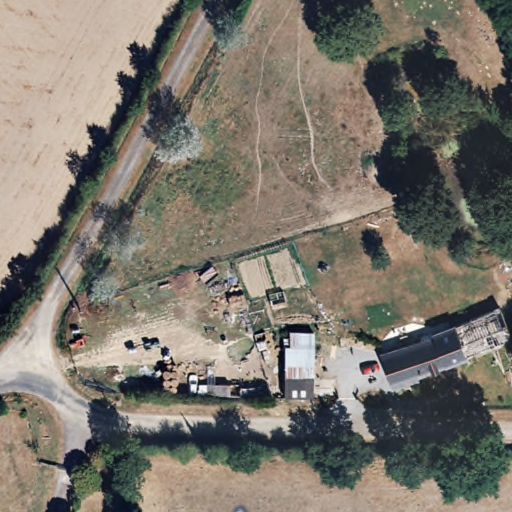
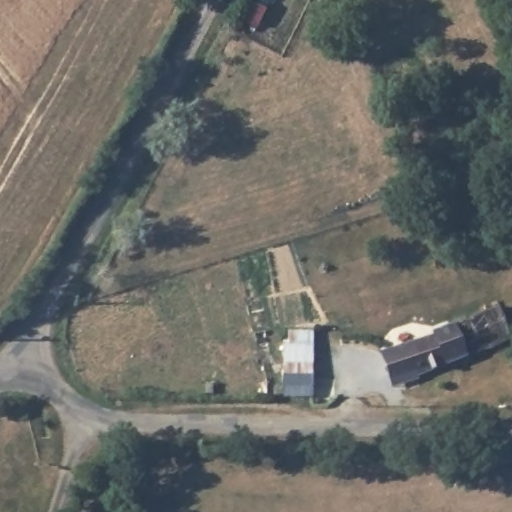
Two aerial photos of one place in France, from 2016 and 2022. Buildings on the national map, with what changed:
unchanged [(493,306),(508,340),(459,360),(392,386),(379,353),(493,306)]

